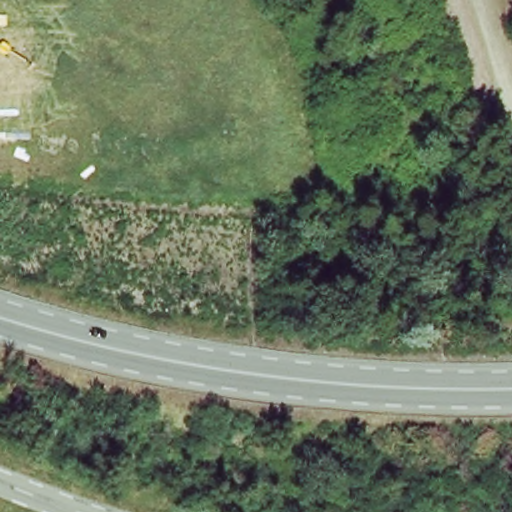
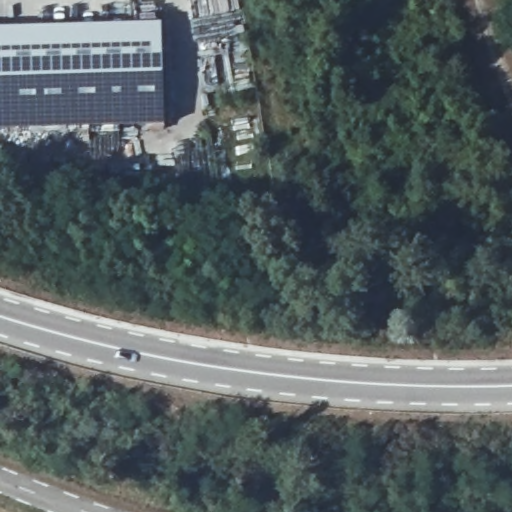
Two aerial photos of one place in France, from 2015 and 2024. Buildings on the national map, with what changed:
new [(162,130),(0,132),(0,34),(157,31),(162,130)]

